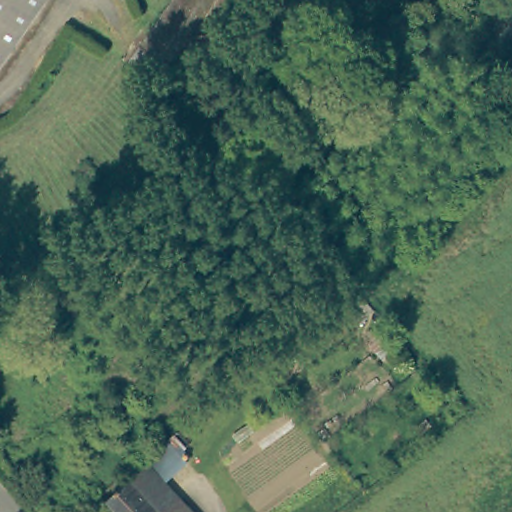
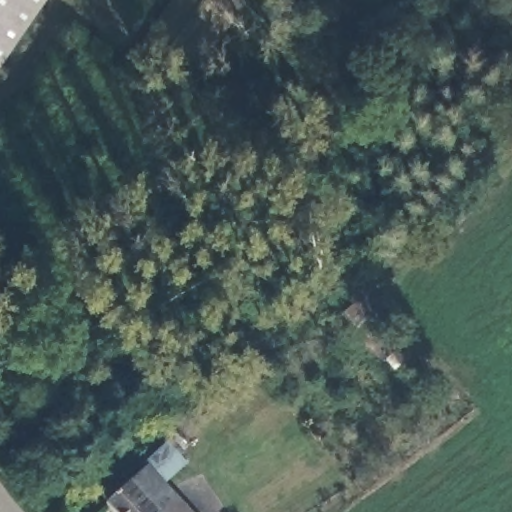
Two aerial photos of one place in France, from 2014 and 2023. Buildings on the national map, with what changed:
unchanged [(0,0),(46,0),(0,64),(0,0)]
unchanged [(125,59),(167,0),(242,0),(175,94),(125,59)]
unchanged [(101,501),(165,438),(186,462),(164,482),(193,512),(112,512),(101,501)]

